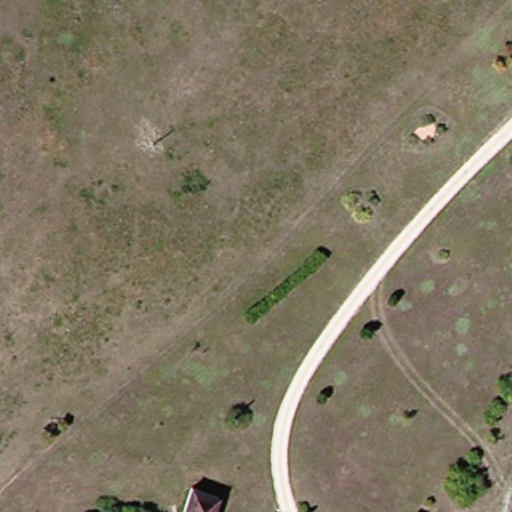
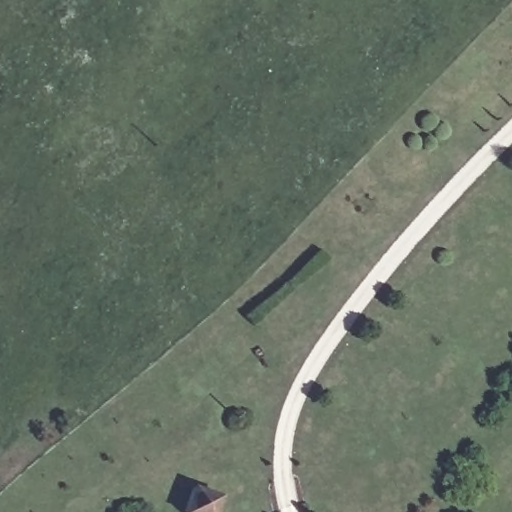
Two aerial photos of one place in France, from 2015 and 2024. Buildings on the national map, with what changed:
unchanged [(223,499),(219,512),(189,512),(195,491),(223,499)]

